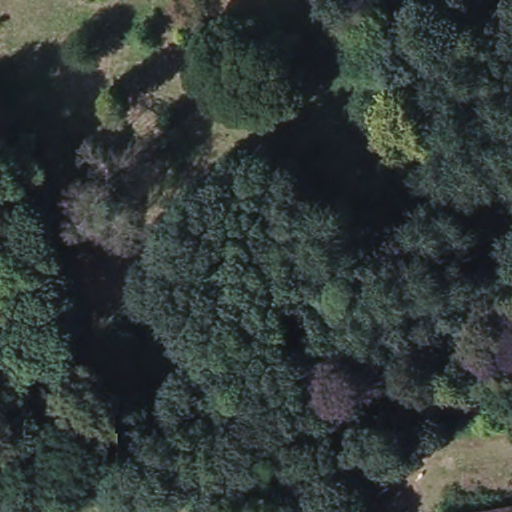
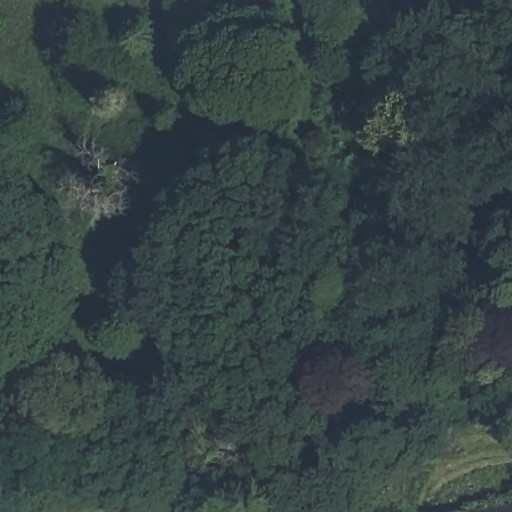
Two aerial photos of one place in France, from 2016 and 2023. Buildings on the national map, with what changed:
unchanged [(485,512),(512,506),(512,512),(485,512)]

